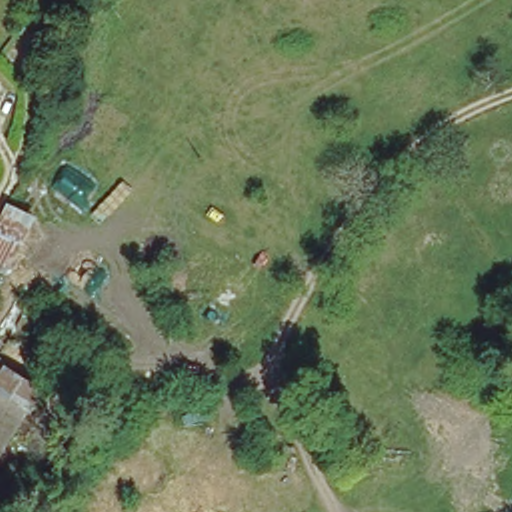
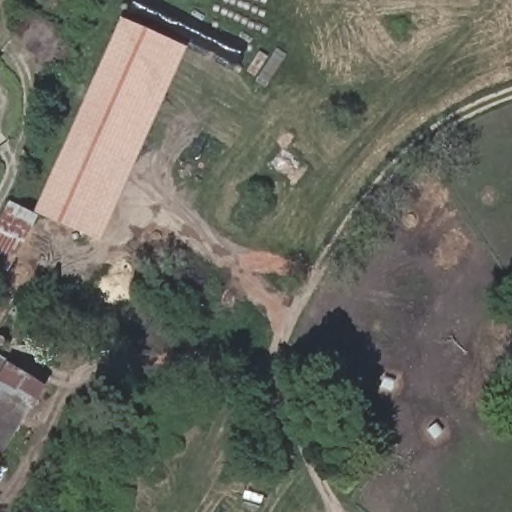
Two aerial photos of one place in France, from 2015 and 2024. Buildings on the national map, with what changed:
new [(124,18),(187,46),(102,240),(37,210),(124,18)]
unchanged [(10,273),(0,268),(0,224),(13,199),(41,214),(38,220),(10,273)]
unchanged [(46,381),(0,456),(0,353),(46,381)]

